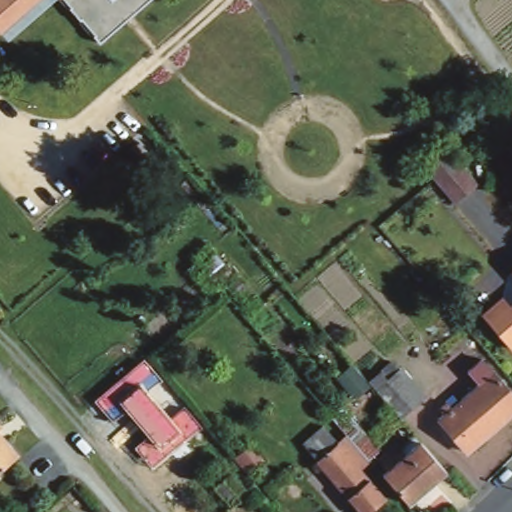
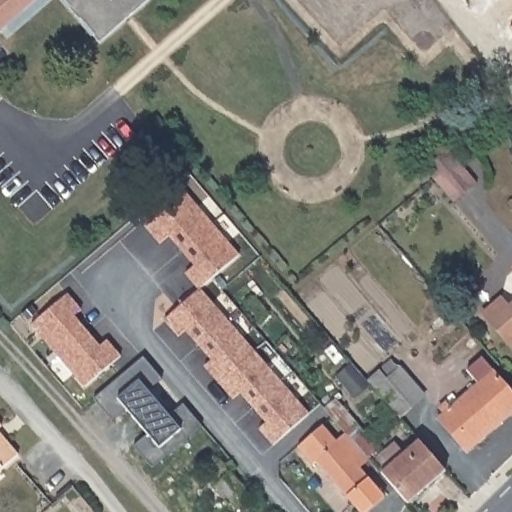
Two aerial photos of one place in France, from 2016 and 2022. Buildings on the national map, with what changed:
unchanged [(39,0),(0,32),(0,0),(39,0)]
unchanged [(59,0),(148,0),(98,44),(59,0)]
unchanged [(453,201),(434,178),(420,161),(441,143),(455,160),(475,183),(453,201)]
new [(195,266),(169,236),(162,243),(147,227),(186,193),(239,254),(200,287),(185,274),(195,266)]
unchanged [(260,249),(272,239),(284,253),(289,249),(295,257),(291,260),(278,271),(260,249)]
unchanged [(296,274),(286,283),(279,275),(289,266),(296,274)]
new [(200,290),(310,414),(274,446),(259,430),(266,423),(240,394),(232,399),(204,367),(210,362),(184,329),(178,335),(165,320),(200,290)]
new [(75,315),(101,347),(108,341),(122,357),(84,389),(32,326),(68,295),(82,312),(75,315)]
unchanged [(499,296),(507,305),(512,300),(512,347),(481,312),(499,296)]
unchanged [(161,381),(147,392),(171,418),(184,404),(201,427),(153,469),(134,446),(147,434),(125,411),(113,421),(94,399),(143,356),(161,381)]
unchanged [(440,419),(445,414),(441,409),(448,403),(452,407),(479,384),(468,372),(481,361),(512,397),(512,412),(473,446),(467,451),(457,439),(440,419)]
unchanged [(390,364),(391,363),(401,370),(402,369),(425,396),(400,418),(369,382),(382,371),(390,364)]
new [(323,426),(336,442),(346,433),(325,409),(337,399),(380,450),(361,468),(369,477),(386,497),(368,512),(360,512),(348,499),(318,463),(313,467),(298,449),(323,426)]
unchanged [(1,428),(0,428),(0,426),(1,428)]
demolished [(315,463),(301,447),(319,431),(333,448),(342,439),(364,464),(354,473),(380,503),(369,512),(351,512),(311,467),(315,463)]
unchanged [(3,438),(18,456),(0,471),(0,435),(3,438)]
unchanged [(446,473),(411,504),(385,474),(421,444),(446,473)]
demolished [(245,454),(249,450),(253,454),(257,452),(266,463),(258,469),(254,473),(244,462),(248,459),(245,454)]
unchanged [(233,474),(249,493),(231,507),(216,489),(233,474)]

